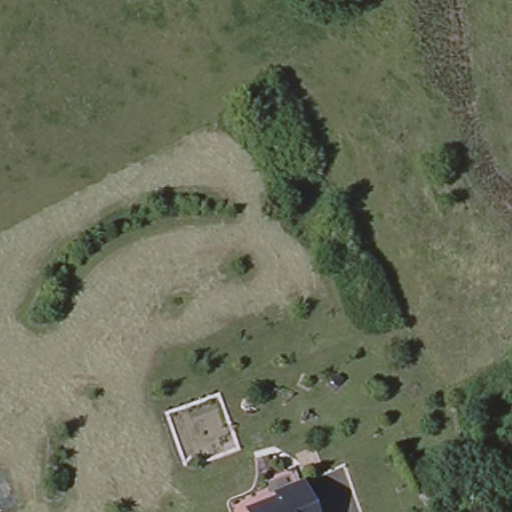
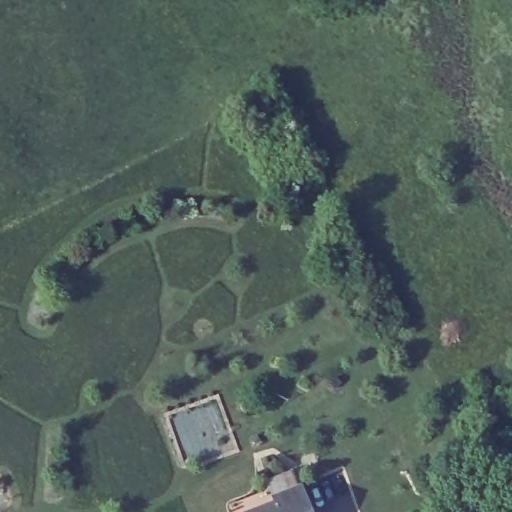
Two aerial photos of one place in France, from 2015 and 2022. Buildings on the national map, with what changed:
unchanged [(270,505),(269,500),(294,491),(302,512),(252,512),(270,505)]

